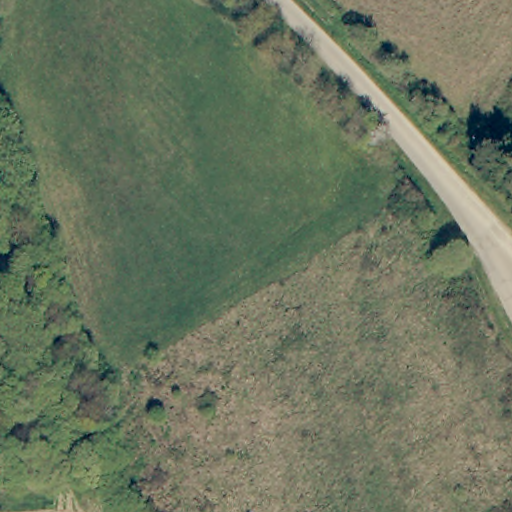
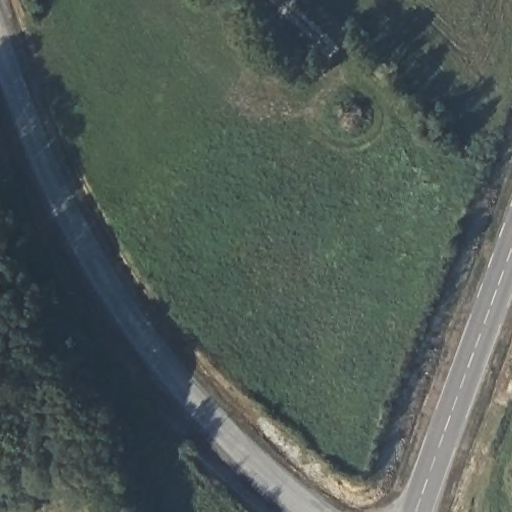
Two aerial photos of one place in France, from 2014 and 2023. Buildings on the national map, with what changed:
[]

